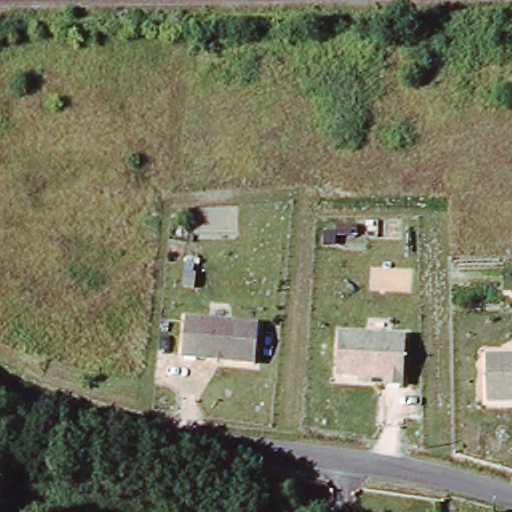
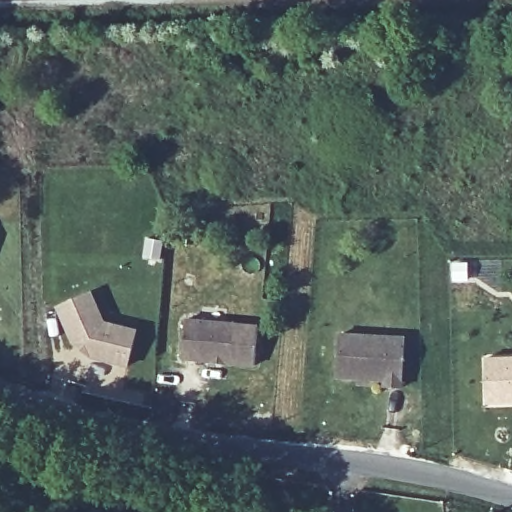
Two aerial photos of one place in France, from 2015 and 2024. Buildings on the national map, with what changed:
new [(58,308),(91,293),(105,323),(137,331),(128,367),(91,357),(74,344),(58,308)]
unchanged [(186,357),(190,317),(263,327),(258,366),(186,357)]
unchanged [(340,333),(405,338),(401,387),(383,386),(383,380),(337,376),(340,333)]
unchanged [(490,402),(488,356),(512,355),(512,401),(490,402)]

